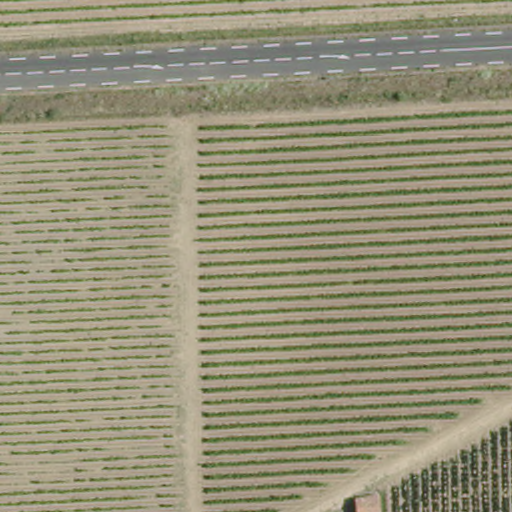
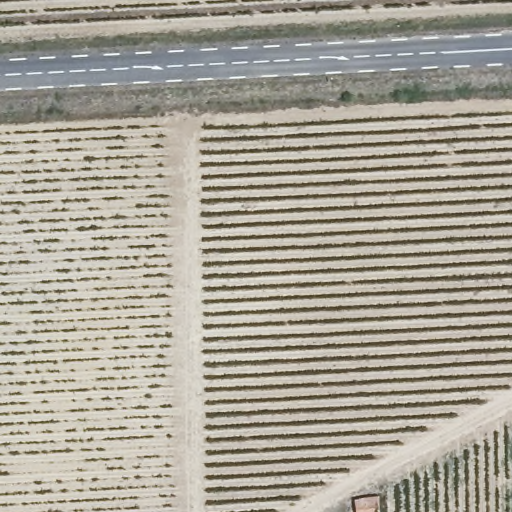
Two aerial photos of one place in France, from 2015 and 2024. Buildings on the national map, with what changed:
unchanged [(355,512),(355,498),(380,497),(381,512),(355,512)]

